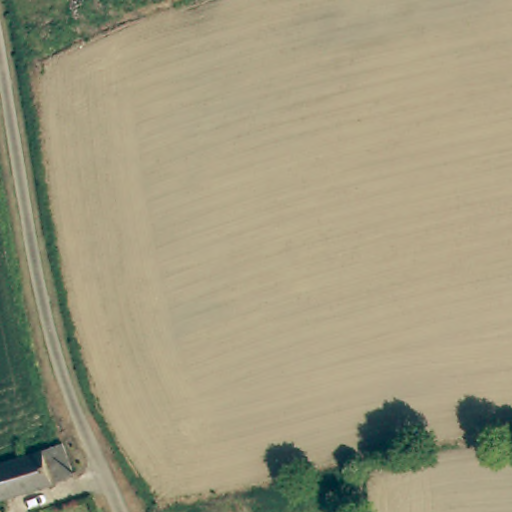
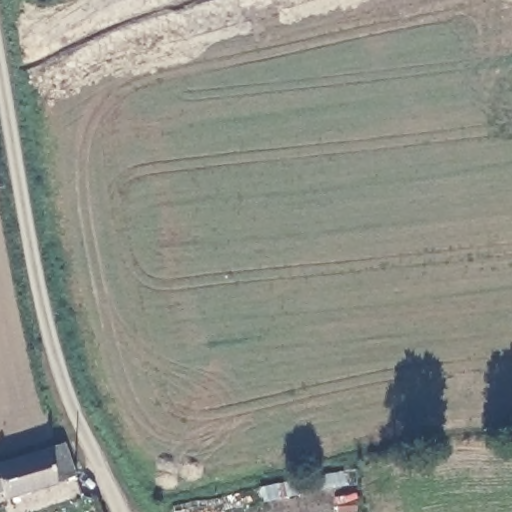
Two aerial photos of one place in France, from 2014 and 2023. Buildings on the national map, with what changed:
unchanged [(11,494),(0,497),(0,466),(66,447),(83,482),(13,501),(11,494)]

